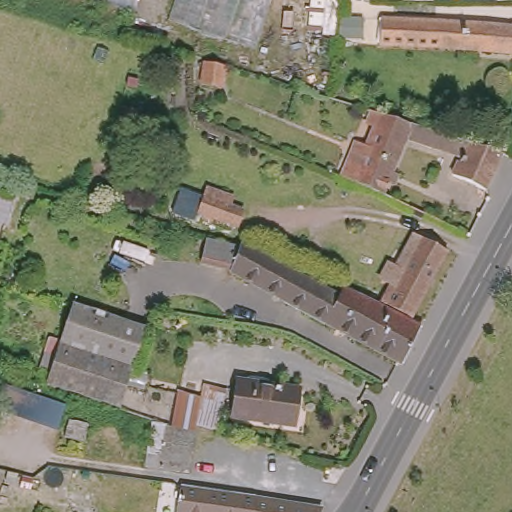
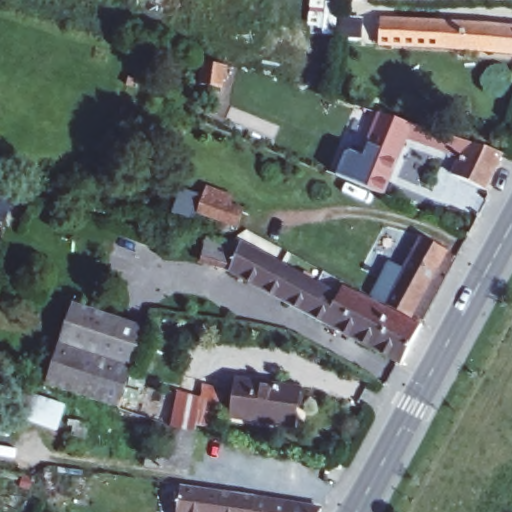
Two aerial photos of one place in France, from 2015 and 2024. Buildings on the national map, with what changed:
demolished [(275,0),(259,46),(113,0),(275,0)]
unchanged [(387,1),(370,1),(351,0),(427,0),(427,1),(387,1)]
new [(427,1),(427,0),(497,0),(427,1)]
unchanged [(497,0),(512,0),(512,1),(497,0)]
unchanged [(381,20),(512,29),(512,55),(487,54),(487,52),(380,44),(381,20)]
unchanged [(204,60),(230,68),(223,89),(199,82),(204,60)]
unchanged [(350,154),(362,159),(372,136),(367,134),(371,127),(366,125),(371,114),(377,114),(398,121),(456,141),(462,143),(501,156),(487,192),(454,178),(461,160),(403,141),(380,194),(340,178),(350,154)]
unchanged [(240,224),(200,209),(206,194),(209,184),(236,194),(232,203),(246,208),(240,224)]
unchanged [(398,187),(417,194),(412,205),(394,196),(398,187)]
unchanged [(359,289),(361,284),(383,295),(390,294),(394,286),(381,279),(387,265),(392,269),(410,234),(419,239),(443,252),(409,319),(370,303),(355,297),(338,289),(341,282),(359,289)]
unchanged [(201,267),(207,239),(238,246),(336,298),(339,292),(419,329),(401,363),(229,274),(201,267)]
unchanged [(102,401),(69,389),(46,382),(72,302),(140,324),(142,325),(129,367),(116,406),(110,404),(102,401)]
unchanged [(236,377),(298,384),(293,419),(231,411),(236,377)]
unchanged [(195,433),(189,433),(182,432),(179,430),(175,429),(177,395),(198,399),(200,386),(224,388),(217,428),(197,425),(197,434),(195,433)]
unchanged [(66,412),(82,418),(77,434),(60,429),(66,412)]
unchanged [(179,430),(182,432),(189,433),(195,433),(187,473),(144,465),(152,421),(175,429),(179,430)]
unchanged [(172,508),(176,483),(320,504),(316,512),(202,512),(172,508)]

